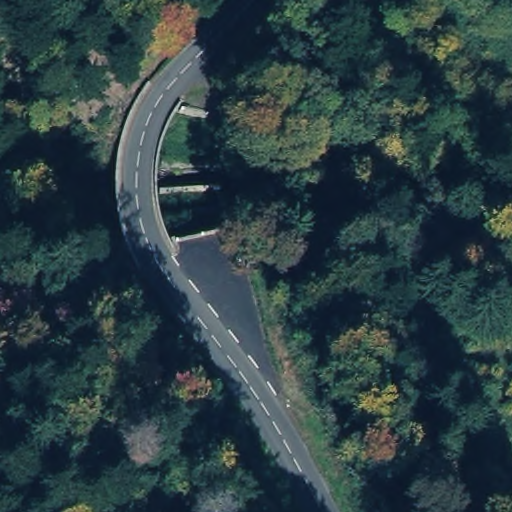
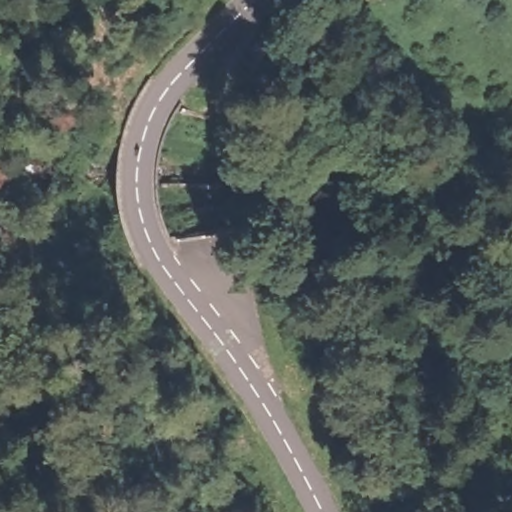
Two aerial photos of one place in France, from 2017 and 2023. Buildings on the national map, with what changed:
unchanged [(293,17),(310,34),(302,41),(286,24),(293,17)]

